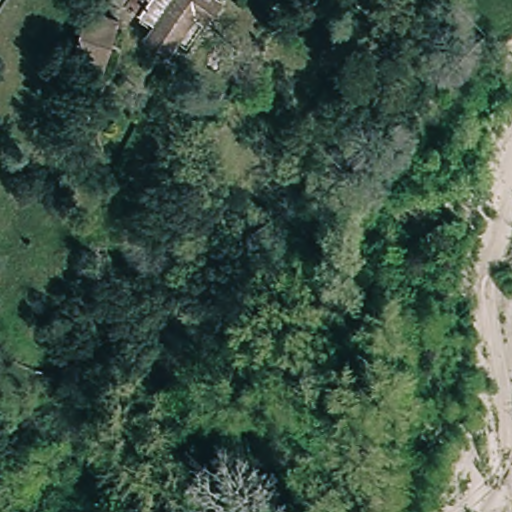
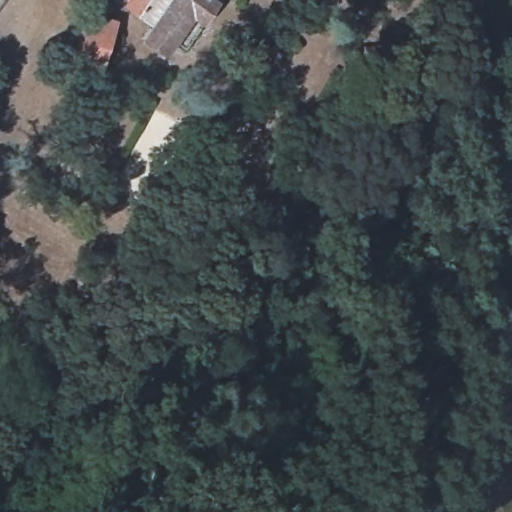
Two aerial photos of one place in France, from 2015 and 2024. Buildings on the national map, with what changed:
unchanged [(206,23),(195,16),(173,47),(121,14),(127,4),(120,0),(222,0),(206,23)]
unchanged [(119,13),(105,63),(91,60),(89,69),(71,64),(88,6),(119,13)]
unchanged [(126,79),(117,99),(99,90),(109,69),(126,79)]

